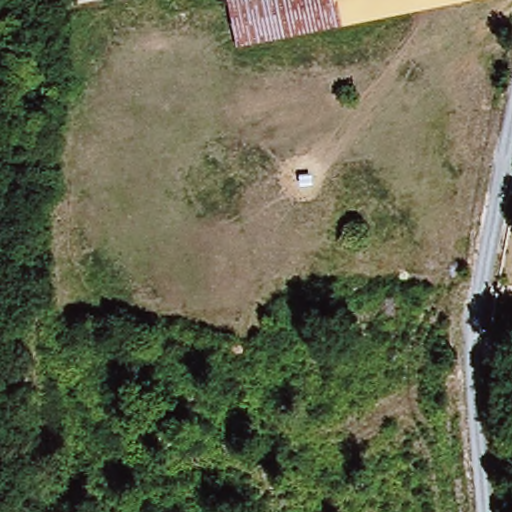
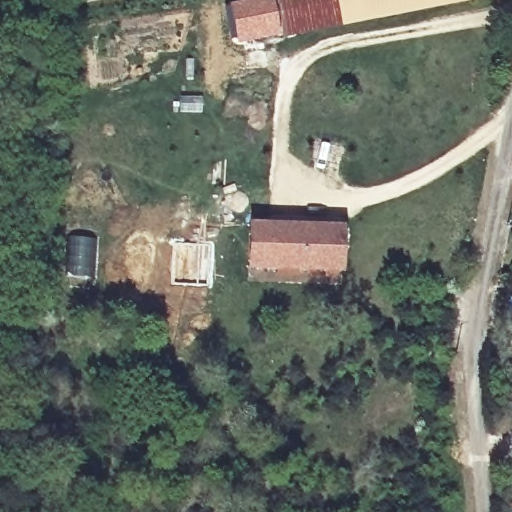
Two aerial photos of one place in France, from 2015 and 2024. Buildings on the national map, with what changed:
unchanged [(239,22),(232,22),(229,0),(466,0),(242,45),(239,22)]
new [(345,225),(344,268),(270,266),(251,266),(251,223),(271,223),(272,222),(345,225)]

